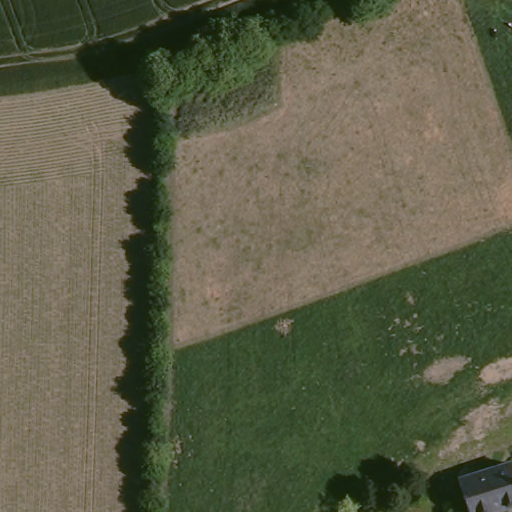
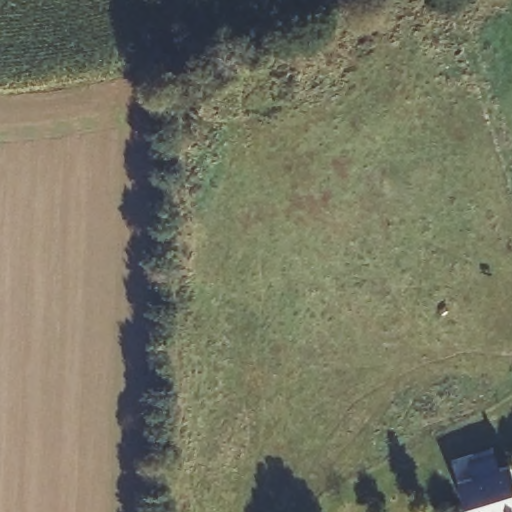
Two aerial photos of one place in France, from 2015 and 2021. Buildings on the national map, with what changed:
unchanged [(512,496),(512,510),(505,512),(460,512),(451,486),(505,469),(512,496)]

